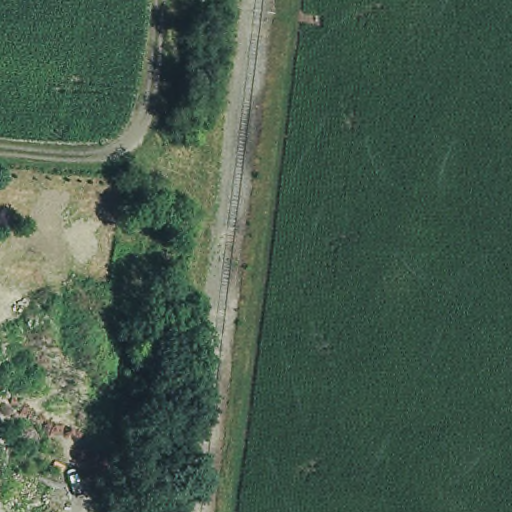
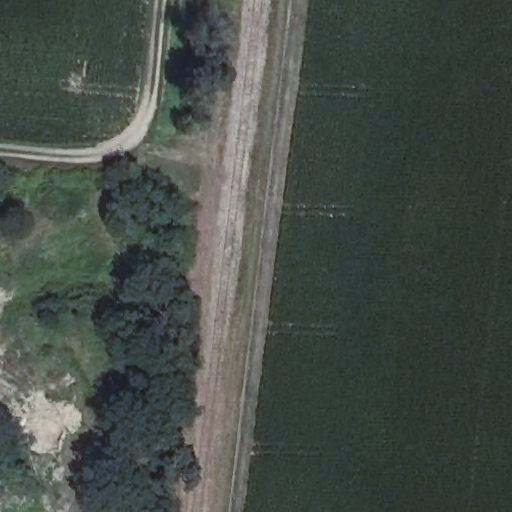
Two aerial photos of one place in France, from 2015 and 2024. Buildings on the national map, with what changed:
unchanged [(0,221),(0,185),(21,186),(30,186),(29,224),(19,222),(0,221)]

